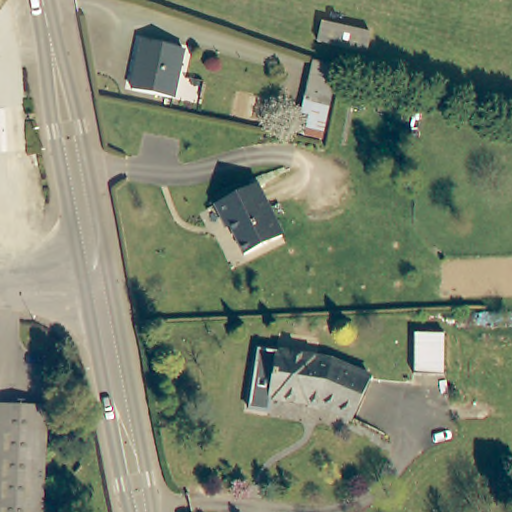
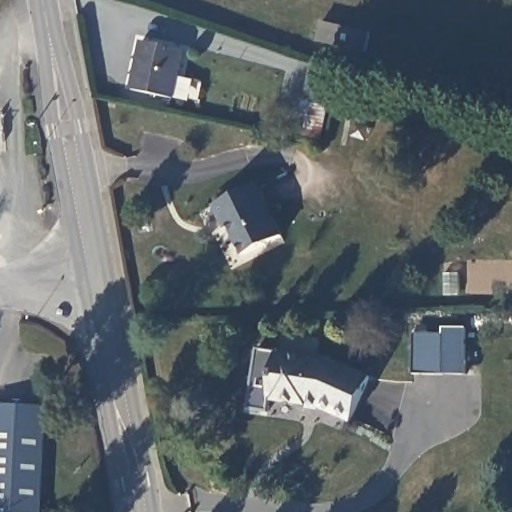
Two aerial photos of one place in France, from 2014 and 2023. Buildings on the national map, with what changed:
unchanged [(367,50),(318,40),(322,18),(372,31),(367,50)]
unchanged [(174,97),(135,91),(142,40),(182,46),(174,97)]
unchanged [(308,133),(310,111),(302,110),(305,71),(330,74),(326,112),(325,134),(308,133)]
unchanged [(215,203),(255,185),(277,234),(241,253),(215,203)]
new [(465,375),(415,374),(416,334),(443,335),(443,329),(466,329),(465,375)]
unchanged [(334,358),(372,379),(353,420),(320,405),(270,398),(277,350),(334,358)]
unchanged [(41,512),(0,512),(0,404),(48,407),(41,512)]

